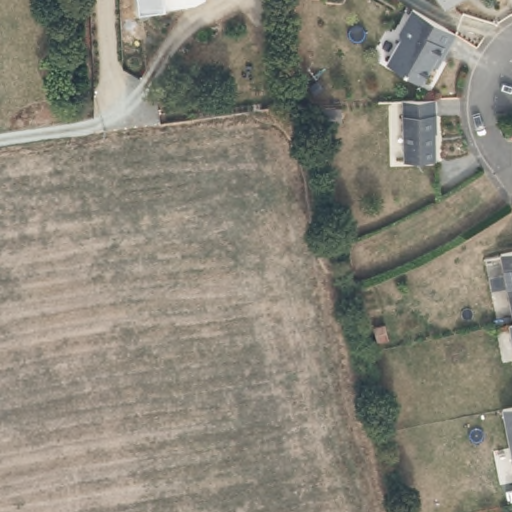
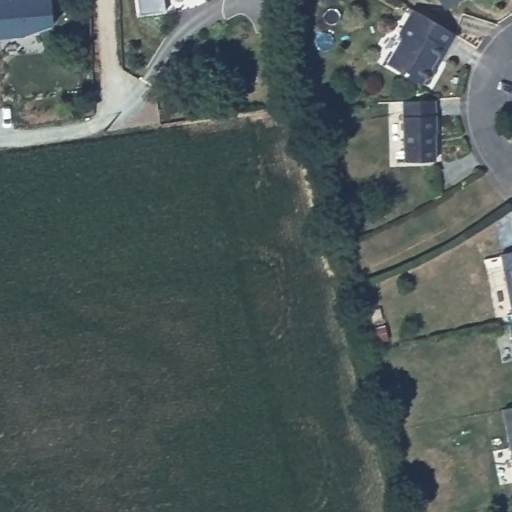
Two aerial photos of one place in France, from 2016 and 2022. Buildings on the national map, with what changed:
new [(23,35),(0,37),(0,0),(50,0),(53,24),(23,35)]
new [(138,14),(137,0),(165,0),(166,11),(138,14)]
unchanged [(438,0),(460,0),(444,10),(438,0)]
unchanged [(454,33),(439,59),(435,56),(420,83),(385,63),(399,39),(397,31),(411,8),(454,33)]
unchanged [(422,98),(432,97),(434,130),(432,130),(434,158),(404,159),(401,99),(422,98)]
unchanged [(512,249),(512,311),(500,252),(512,249)]
unchanged [(512,337),(509,322),(512,321),(512,337)]
unchanged [(512,410),(512,458),(502,412),(512,410)]

